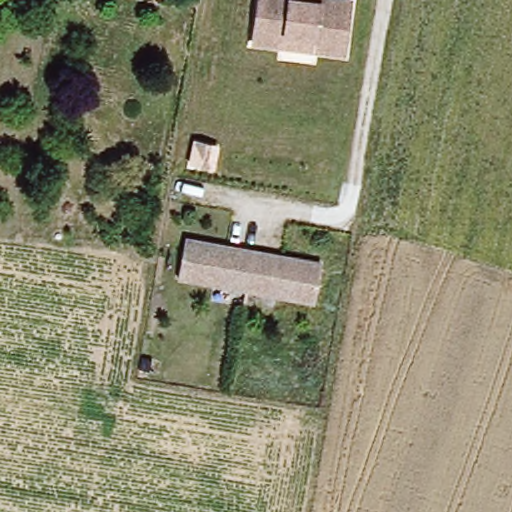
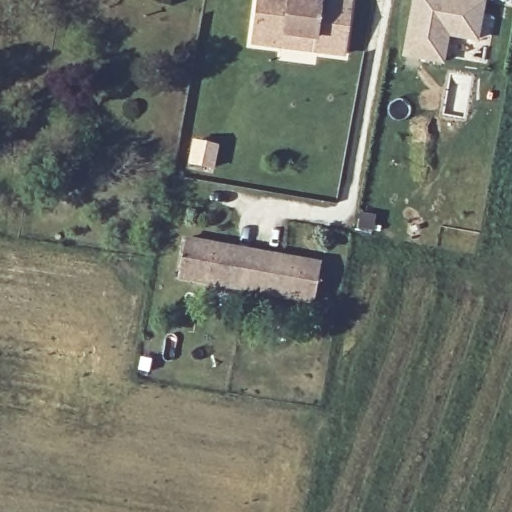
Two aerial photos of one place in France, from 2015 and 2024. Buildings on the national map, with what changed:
unchanged [(252,45),(257,0),(346,0),(350,1),(343,56),(317,53),(279,48),(252,45)]
new [(411,0),(464,0),(481,3),(474,41),(444,36),(439,63),(402,56),(411,0)]
new [(191,144),(213,148),(208,170),(186,166),(191,144)]
unchanged [(318,268),(311,307),(173,282),(180,244),(318,268)]

